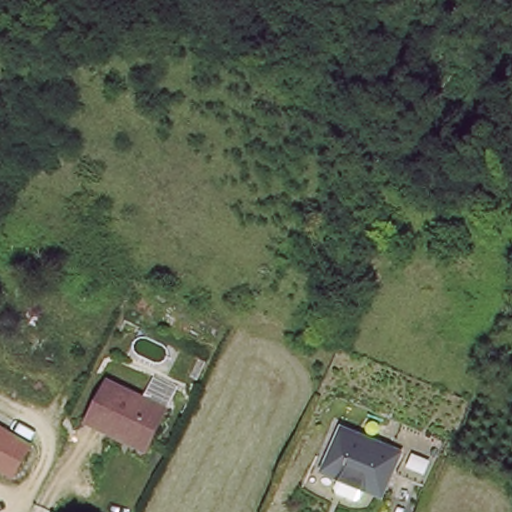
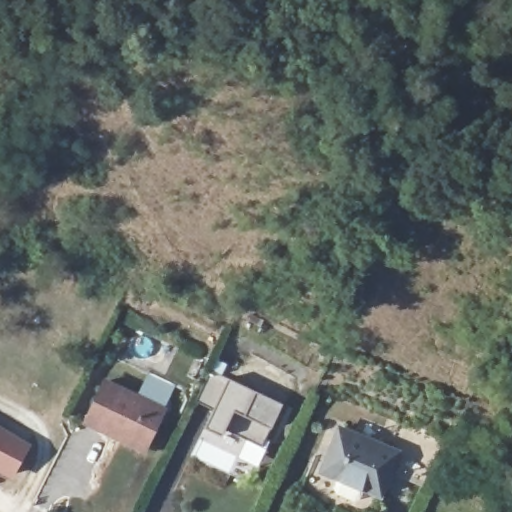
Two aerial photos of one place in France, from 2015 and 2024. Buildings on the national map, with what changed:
new [(282,409),(261,452),(207,425),(214,414),(195,405),(212,373),(282,409)]
unchanged [(119,435),(116,441),(85,425),(105,385),(164,414),(147,449),(119,435)]
unchanged [(314,470),(332,429),(386,451),(396,427),(441,446),(423,491),(381,473),(372,494),(314,470)]
unchanged [(0,471),(0,430),(28,446),(10,477),(0,471)]

